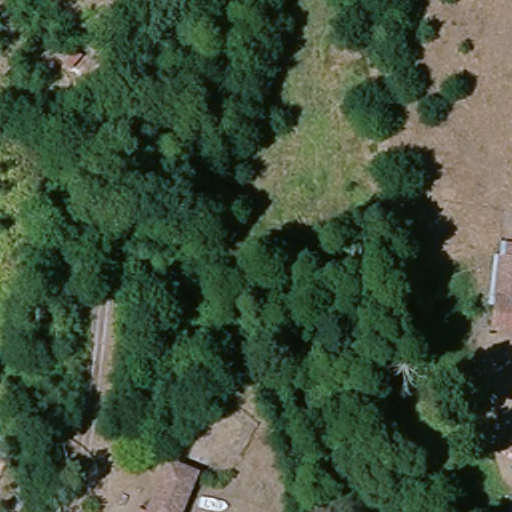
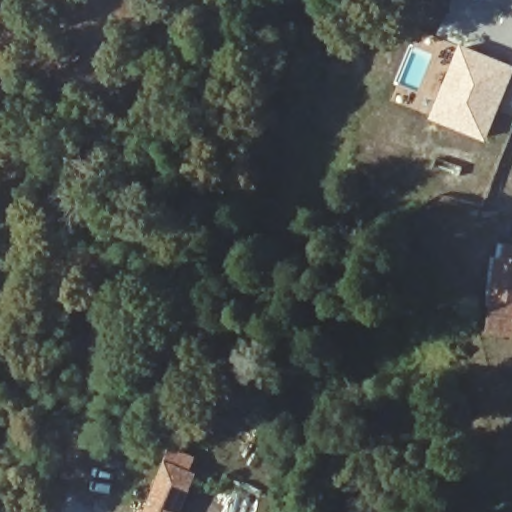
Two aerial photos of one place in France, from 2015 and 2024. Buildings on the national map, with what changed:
new [(459,42),(512,64),(512,79),(487,142),(429,119),(459,42)]
unchanged [(506,270),(512,270),(512,263),(512,342),(498,341),(502,310),(506,270)]
unchanged [(194,477),(180,512),(150,512),(169,467),(194,477)]

